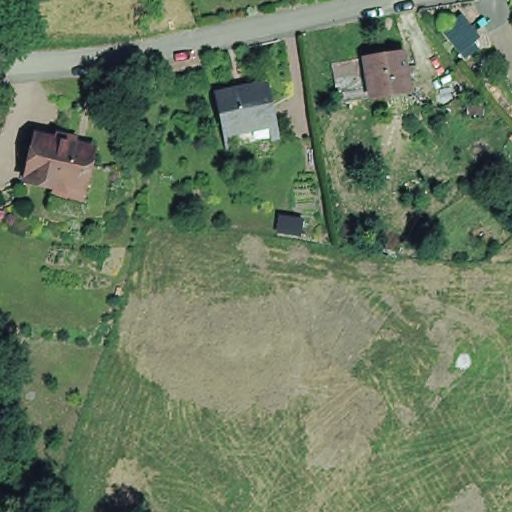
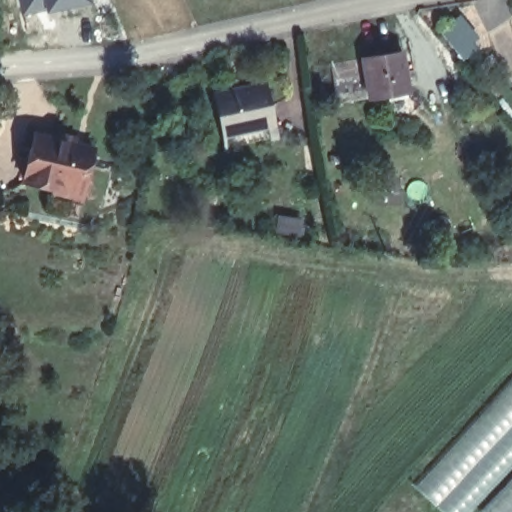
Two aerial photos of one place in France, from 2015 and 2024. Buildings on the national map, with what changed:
new [(88,7),(20,18),(16,0),(87,0),(88,7)]
new [(461,15),(476,35),(460,48),(444,28),(461,15)]
unchanged [(375,55),(415,49),(421,89),(382,95),(375,55)]
unchanged [(350,101),(343,60),(375,55),(382,95),(350,101)]
unchanged [(217,87),(268,76),(277,115),(280,128),(228,139),(225,126),(217,87)]
unchanged [(53,201),(55,190),(25,183),(34,138),(55,142),(59,137),(77,141),(78,147),(94,151),(85,193),(82,207),(53,201)]
new [(302,221),(300,241),(275,237),(278,216),(302,221)]
new [(469,512),(444,512),(415,484),(512,378),(512,512),(479,512),(473,507),(469,512)]

